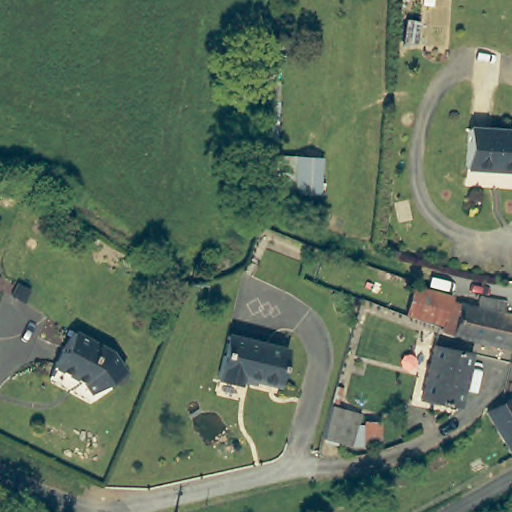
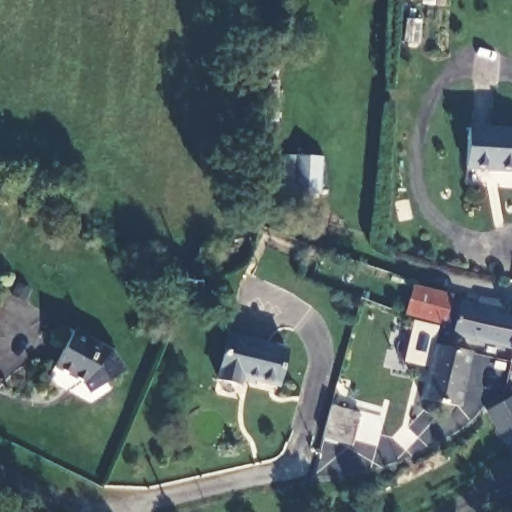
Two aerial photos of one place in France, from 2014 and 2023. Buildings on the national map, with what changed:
unchanged [(269,99),(278,101),(275,141),(265,142),(269,99)]
unchanged [(512,130),(512,170),(465,167),(468,127),(512,130)]
unchanged [(320,157),(318,194),(292,192),(295,156),(320,157)]
unchanged [(441,325),(406,316),(413,285),(451,297),(450,301),(458,302),(452,336),(451,335),(439,331),(441,325)]
unchanged [(503,313),(512,315),(512,349),(452,336),(458,302),(476,307),(478,297),(505,302),(503,313)]
unchanged [(238,383),(216,378),(227,335),(286,348),(277,386),(240,377),(238,383)]
unchanged [(82,387),(53,372),(72,336),(109,356),(122,375),(89,397),(82,387)]
unchanged [(465,357),(452,412),(415,403),(428,350),(444,353),(465,357)]
unchanged [(493,448),(492,446),(489,444),(486,447),(478,433),(486,429),(481,416),(509,400),(512,405),(512,456),(506,460),(497,447),(493,448)]
unchanged [(329,411),(359,417),(350,450),(321,442),(329,411)]
unchanged [(361,451),(362,429),(378,430),(378,450),(361,451)]

